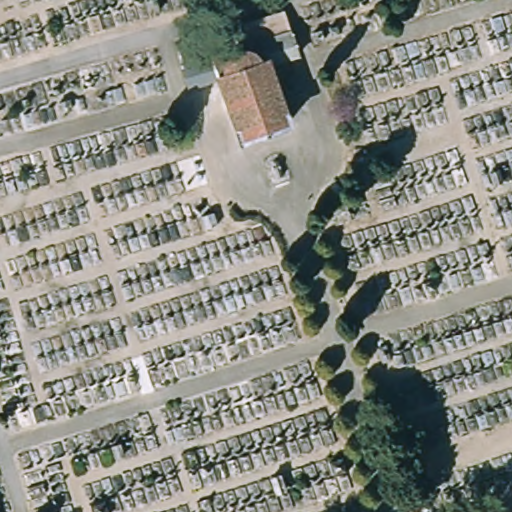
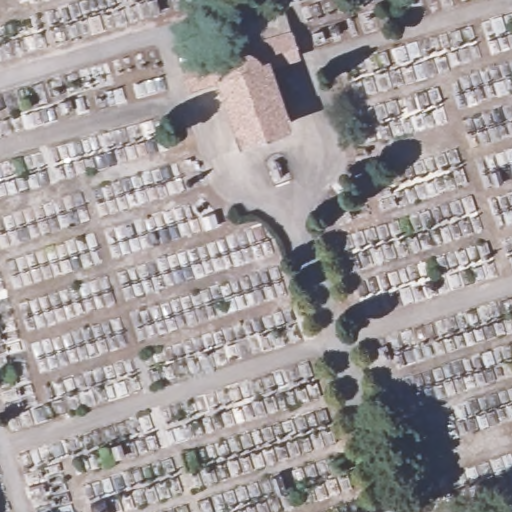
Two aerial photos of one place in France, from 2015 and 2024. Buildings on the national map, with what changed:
unchanged [(216,82),(188,90),(176,42),(284,10),(300,57),(272,65),(294,126),(239,145),(216,82)]

